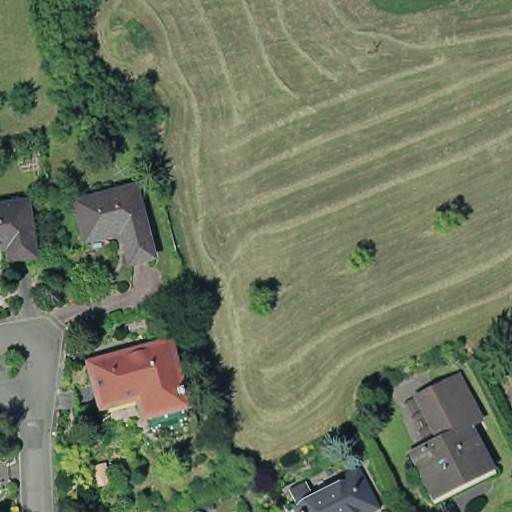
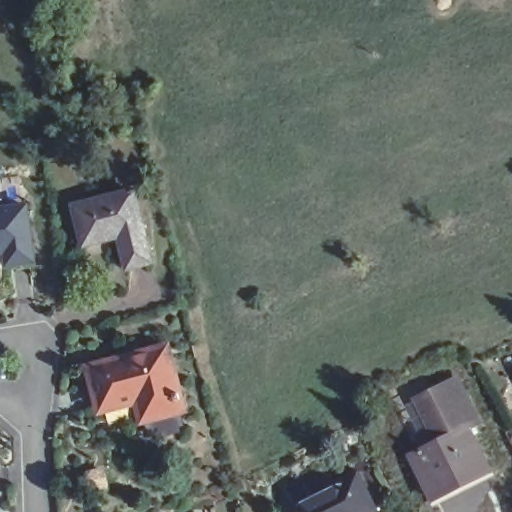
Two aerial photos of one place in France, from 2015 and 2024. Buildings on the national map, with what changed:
unchanged [(125,270),(121,250),(123,249),(120,236),(83,243),(76,205),(135,195),(150,265),(125,270)]
unchanged [(2,252),(0,253),(0,212),(23,209),(30,262),(5,265),(2,252)]
unchanged [(148,414),(145,415),(139,396),(98,407),(85,366),(160,344),(166,362),(168,361),(177,390),(180,389),(182,396),(179,397),(181,403),(181,406),(148,414)]
unchanged [(467,424),(440,438),(417,394),(456,374),(480,419),(468,426),(467,424)]
unchanged [(490,468),(433,496),(412,452),(440,438),(467,424),(468,426),(490,468)]
unchanged [(295,505),(298,503),(291,489),(305,482),(312,497),(345,481),(342,475),(359,468),(376,505),(380,504),(381,507),(371,512),(297,512),(298,511),(295,505)]

